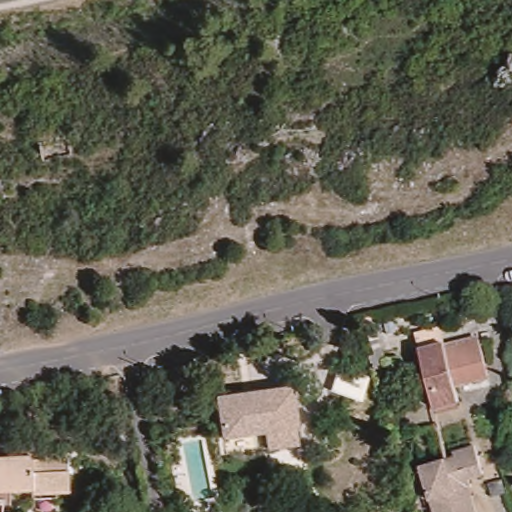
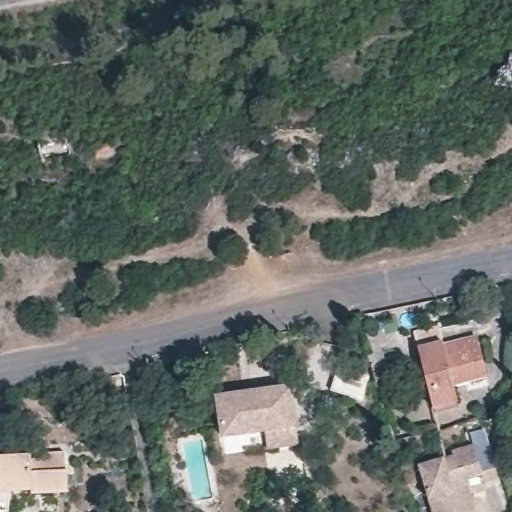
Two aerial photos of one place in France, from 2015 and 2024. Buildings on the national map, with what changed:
unchanged [(457,402),(433,408),(418,350),(441,343),(443,348),(477,339),(487,375),(452,385),(457,402)]
unchanged [(381,352),(384,363),(389,362),(397,391),(379,396),(367,355),(381,352)]
unchanged [(149,373),(170,369),(172,378),(150,382),(149,373)]
unchanged [(331,378),(361,371),(365,385),(335,392),(331,378)]
unchanged [(299,382),(307,438),(277,443),(275,443),(273,426),(231,432),(226,393),(299,382)]
unchanged [(452,455),(450,448),(472,442),(481,471),(468,476),(470,484),(468,485),(476,512),(436,512),(422,464),(452,455)]
unchanged [(0,512),(0,451),(32,453),(32,457),(46,458),(46,453),(66,453),(65,493),(54,493),(31,492),(31,488),(7,487),(6,507),(5,512),(0,512)]

